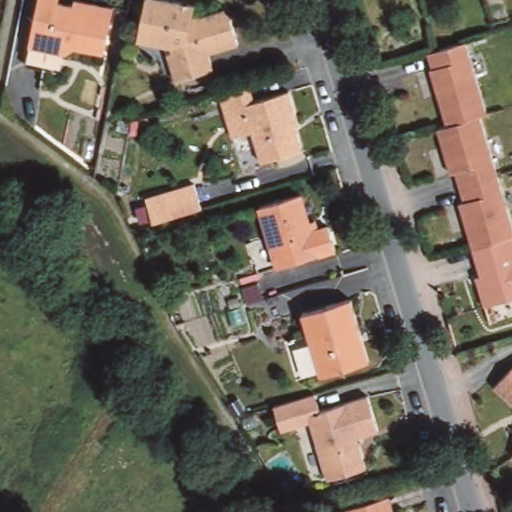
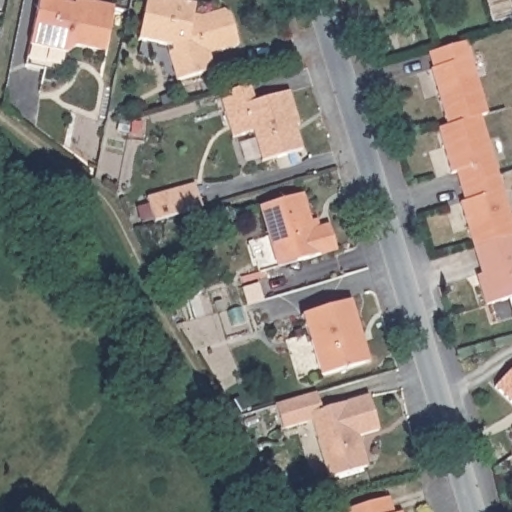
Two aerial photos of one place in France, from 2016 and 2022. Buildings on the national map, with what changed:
unchanged [(75,47),(65,55),(63,70),(26,61),(39,0),(61,0),(75,3),(75,0),(88,0),(116,5),(106,53),(75,47)]
unchanged [(205,15),(222,10),(226,9),(231,12),(239,41),(209,50),(215,67),(179,78),(169,54),(174,52),(174,46),(139,38),(146,2),(146,0),(177,0),(196,4),(195,15),(205,15)]
unchanged [(469,43),(489,112),(482,114),(490,140),(512,215),(512,233),(508,234),(475,243),(463,199),(467,198),(463,184),(459,169),(454,171),(448,152),(445,142),(440,127),(450,124),(433,70),(435,69),(431,54),(469,43)]
unchanged [(251,81),(256,96),(287,87),(297,120),(292,121),(299,145),(261,157),(252,130),(234,135),(220,91),(251,81)]
unchanged [(168,193),(196,185),(203,207),(175,216),(168,193)]
unchanged [(269,259),(254,208),(312,189),(320,215),(327,214),(330,224),(342,223),(349,244),(291,263),(272,269),(269,259)]
unchanged [(508,234),(512,233),(512,292),(487,299),(480,276),(485,275),(475,243),(508,234)]
unchanged [(351,299),(362,334),(355,337),(363,363),(320,373),(302,312),(351,299)]
unchanged [(495,382),(512,365),(512,400),(495,382)]
unchanged [(318,389),(322,406),(371,393),(380,426),(359,432),(367,461),(328,473),(312,417),(285,423),(277,401),(318,389)]
unchanged [(332,509),(348,505),(394,491),(399,509),(403,509),(404,512),(333,512),(332,509)]

